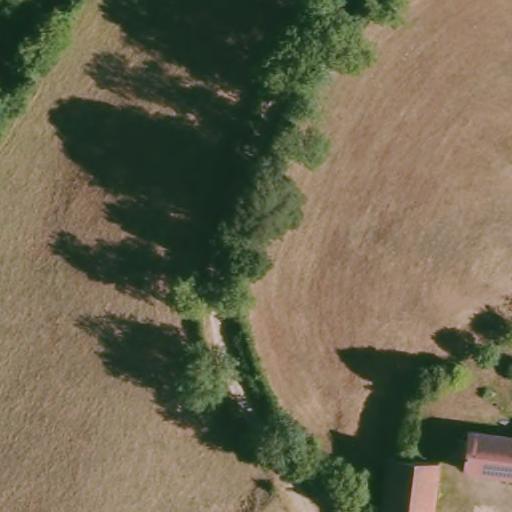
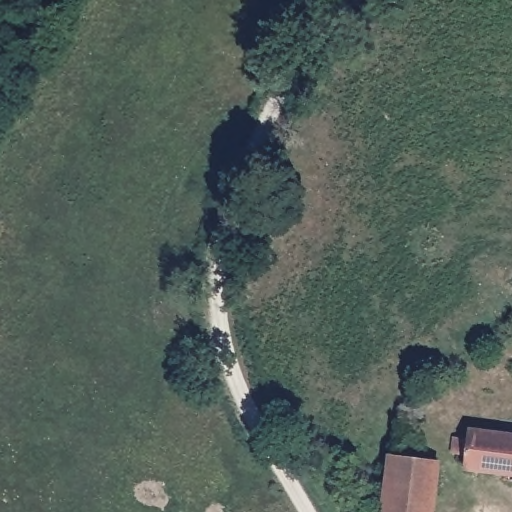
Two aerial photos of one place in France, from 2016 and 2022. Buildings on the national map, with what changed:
unchanged [(471,443),(473,433),(512,439),(512,477),(467,472),(470,460),(455,456),(457,441),(471,443)]
unchanged [(388,454),(437,462),(431,512),(382,512),(388,454)]

